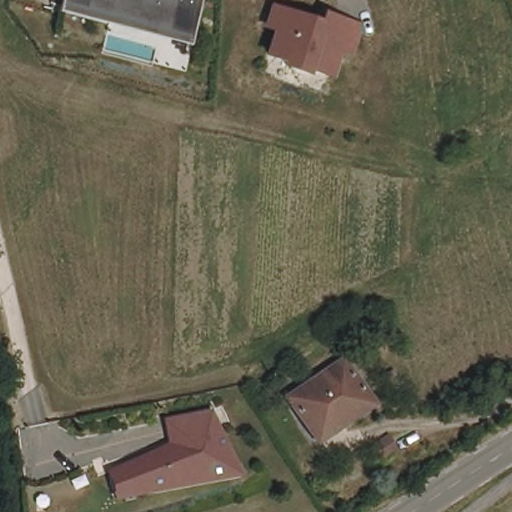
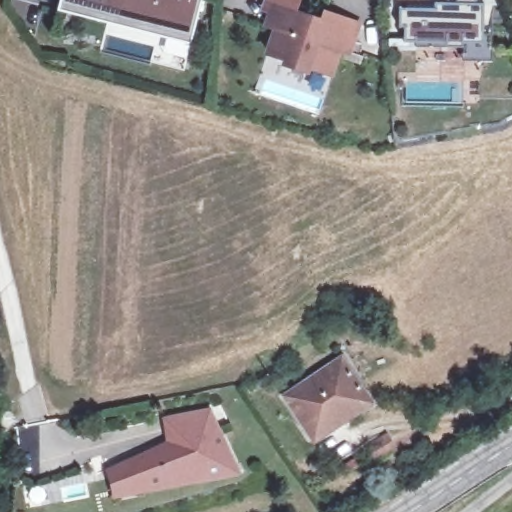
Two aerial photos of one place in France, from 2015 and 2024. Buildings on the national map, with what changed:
unchanged [(189,44),(59,12),(63,0),(200,0),(189,44)]
unchanged [(273,22),(263,19),(270,0),(318,16),(321,7),(354,19),(344,46),(335,43),(326,68),(304,60),(302,65),(281,58),(283,53),(264,47),(273,22)]
new [(404,29),(400,28),(401,7),(436,7),(436,3),(448,3),(448,0),(476,0),(476,4),(484,4),(484,32),(492,32),(492,61),(461,61),(459,47),(444,47),(444,44),(404,43),(404,29)]
unchanged [(369,406),(311,439),(286,395),(344,365),(369,406)]
unchanged [(108,474),(134,465),(171,450),(164,421),(208,413),(237,473),(143,492),(118,498),(108,474)]

